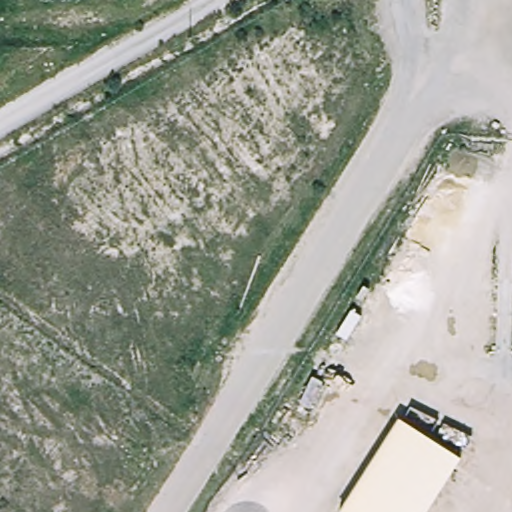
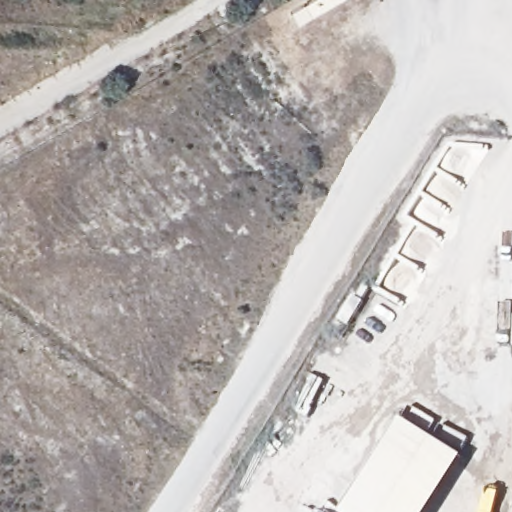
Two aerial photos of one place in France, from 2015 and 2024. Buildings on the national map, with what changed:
unchanged [(464,453),(427,512),(342,512),(403,416),(464,453)]

